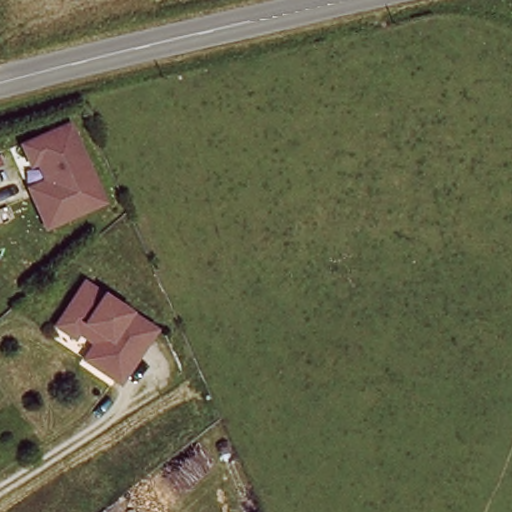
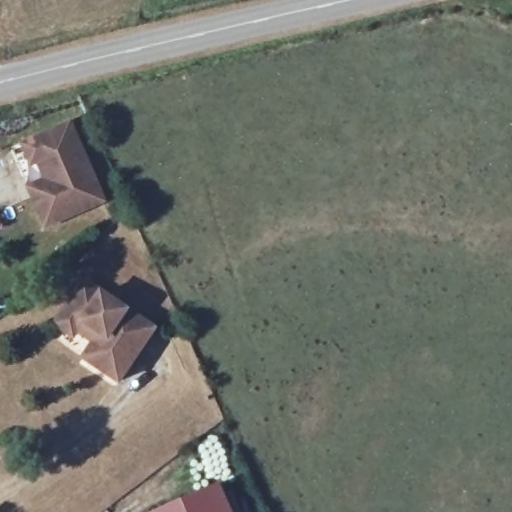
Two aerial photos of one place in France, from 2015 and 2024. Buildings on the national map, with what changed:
unchanged [(51,187),(48,179),(65,171),(57,153),(50,156),(42,136),(48,133),(82,119),(89,115),(97,134),(122,191),(64,217),(51,187)]
unchanged [(90,331),(87,336),(69,325),(73,318),(73,317),(93,289),(98,282),(115,294),(167,328),(130,381),(103,362),(97,357),(107,342),(90,331)]
new [(220,483),(232,512),(157,512),(220,483)]

